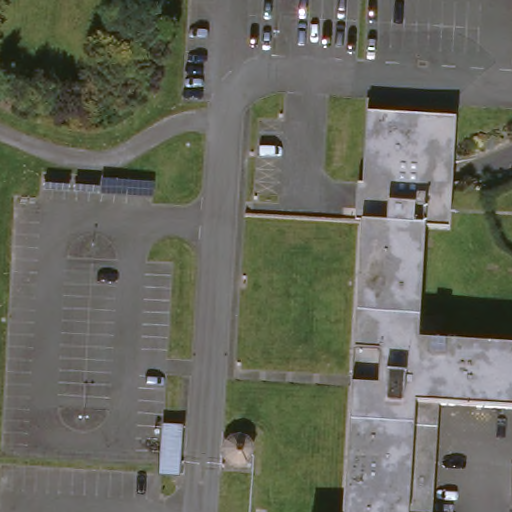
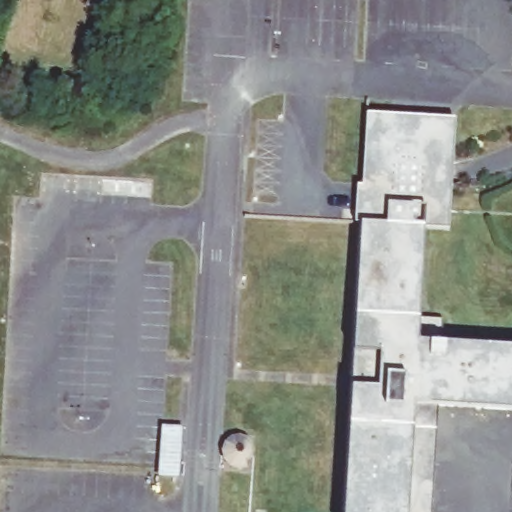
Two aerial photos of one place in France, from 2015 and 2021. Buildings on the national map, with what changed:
unchanged [(440,407),(432,512),(342,512),(358,230),(348,229),(350,193),(364,194),(367,132),(368,118),(404,120),(421,121),(453,122),(448,231),(428,230),(423,315),(443,316),(441,341),(512,345),(512,411),(440,407)]

